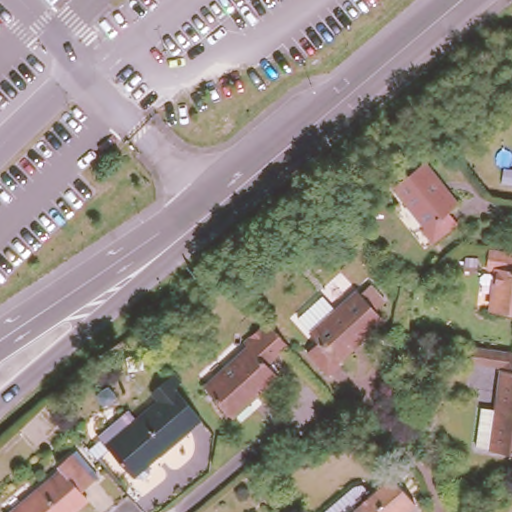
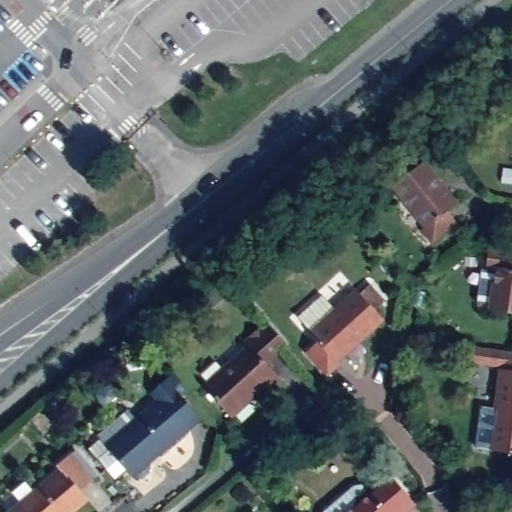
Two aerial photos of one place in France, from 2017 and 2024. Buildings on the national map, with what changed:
unchanged [(47,1),(46,0),(48,0),(47,1)]
unchanged [(416,226),(421,222),(388,181),(417,157),(451,200),(442,208),(451,218),(427,239),(416,226)]
unchanged [(492,262),(482,261),(484,244),(512,248),(512,309),(487,305),(492,262)]
unchanged [(305,348),(316,338),(306,326),(353,284),(380,315),(334,357),(338,362),(326,373),(305,348)]
unchanged [(269,360),(279,371),(233,413),(206,383),(251,342),(245,337),(265,319),(267,317),(289,342),(283,347),(280,350),(269,360)]
unchanged [(475,402),(491,405),(497,365),(495,365),(495,362),(464,358),(466,341),(512,348),(512,449),(470,443),(475,402)]
unchanged [(129,357),(141,355),(143,364),(130,366),(129,357)]
unchanged [(131,404),(140,413),(162,394),(155,386),(178,366),(186,376),(178,383),(205,414),(166,448),(160,447),(135,469),(101,430),(131,404)]
unchanged [(81,492),(57,512),(1,512),(55,466),(51,460),(66,447),(69,445),(85,464),(82,467),(88,473),(74,485),(81,492)]
unchanged [(355,480),(362,479),(368,485),(375,486),(391,471),(415,499),(400,512),(321,512),(325,507),(355,480)]

